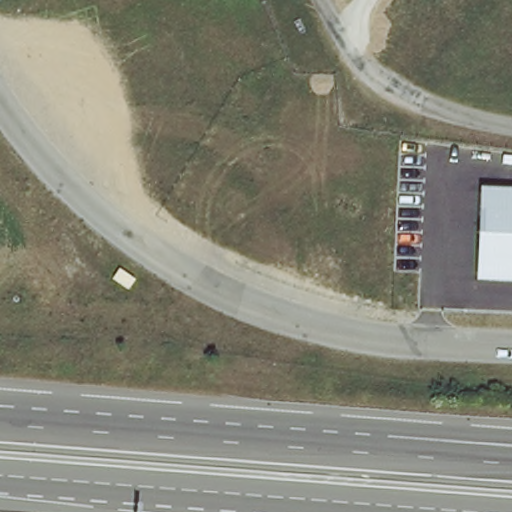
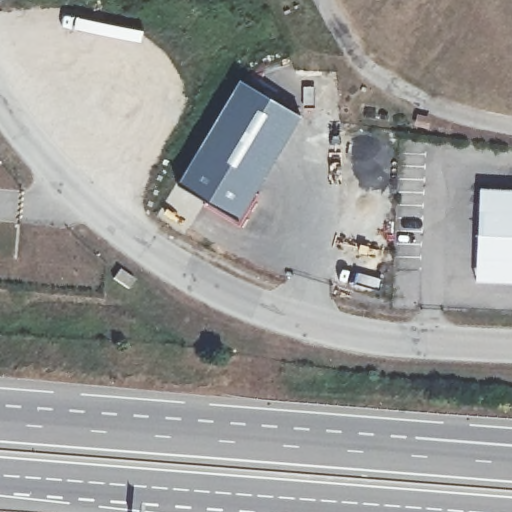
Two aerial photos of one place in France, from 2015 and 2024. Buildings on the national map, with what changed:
new [(241,76),(302,114),(238,223),(206,204),(209,199),(179,181),(241,76)]
unchanged [(476,280),(478,186),(512,187),(512,281),(476,280)]
unchanged [(110,280),(116,271),(133,281),(127,291),(110,280)]

